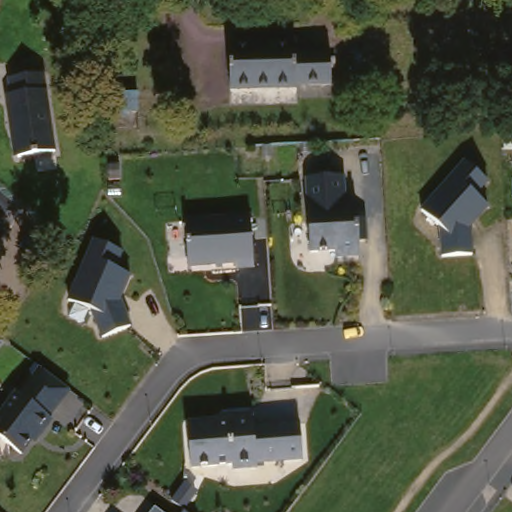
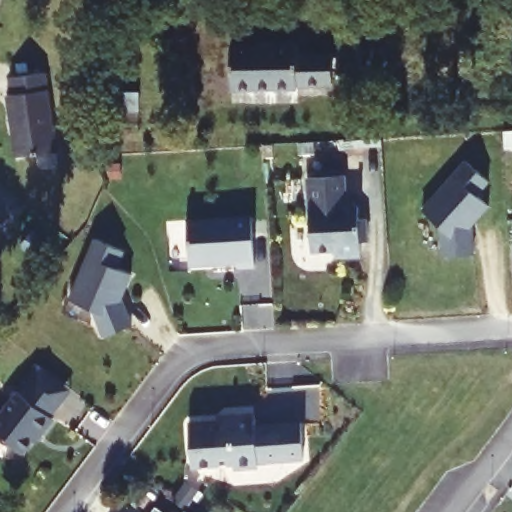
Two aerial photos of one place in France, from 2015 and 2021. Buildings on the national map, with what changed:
unchanged [(293,44),(293,59),(331,58),(331,89),(230,87),(230,44),(293,44)]
unchanged [(57,147),(16,152),(7,79),(46,73),(57,147)]
unchanged [(114,84),(115,102),(86,105),(83,87),(114,84)]
unchanged [(448,256),(445,233),(430,203),(474,157),(494,177),(482,190),(494,203),(476,221),(477,254),(448,256)]
unchanged [(345,256),(341,249),(318,251),(310,177),(347,175),(351,204),(361,204),(362,253),(345,256)]
unchanged [(198,219),(252,215),(257,263),(245,265),(241,258),(200,261),(198,219)]
unchanged [(0,243),(0,219),(11,228),(0,243)]
unchanged [(136,327),(111,336),(101,311),(72,294),(102,233),(128,248),(122,266),(135,271),(123,300),(136,327)]
unchanged [(0,418),(43,363),(73,387),(29,450),(0,427),(0,418)]
unchanged [(220,421),(219,415),(258,413),(258,423),(304,418),(308,455),(258,460),(258,466),(235,468),(233,460),(195,463),(190,424),(220,421)]
unchanged [(176,512),(151,512),(158,501),(176,512)]
unchanged [(194,512),(187,512),(191,509),(194,512)]

